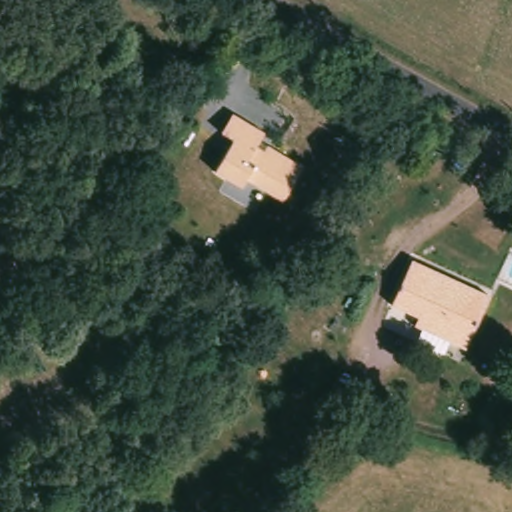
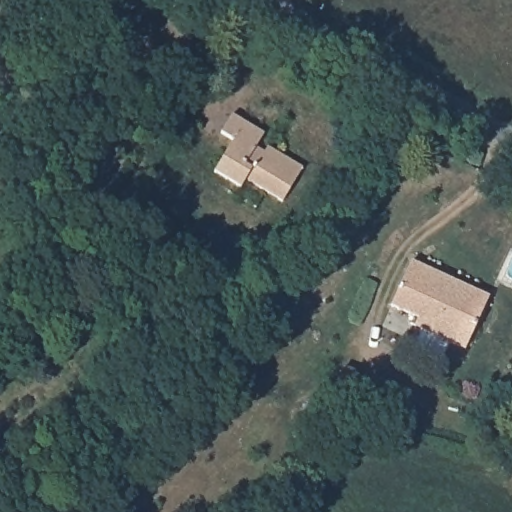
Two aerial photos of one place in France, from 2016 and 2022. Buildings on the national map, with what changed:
unchanged [(220,140),(232,117),(313,156),(292,200),(254,181),(251,186),(244,188),(218,175),(232,146),(220,140)]
unchanged [(490,294),(467,348),(412,326),(417,316),(387,305),(408,260),(490,294)]

